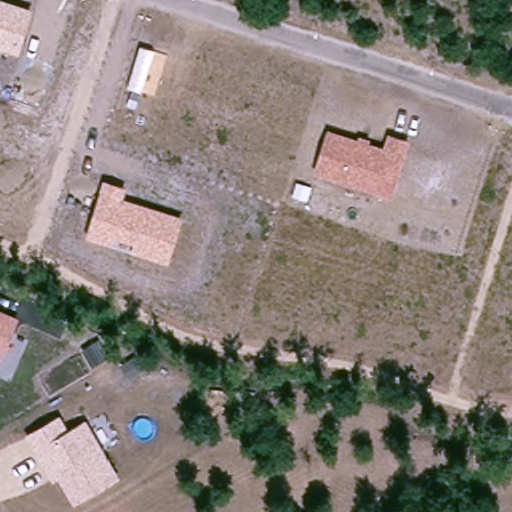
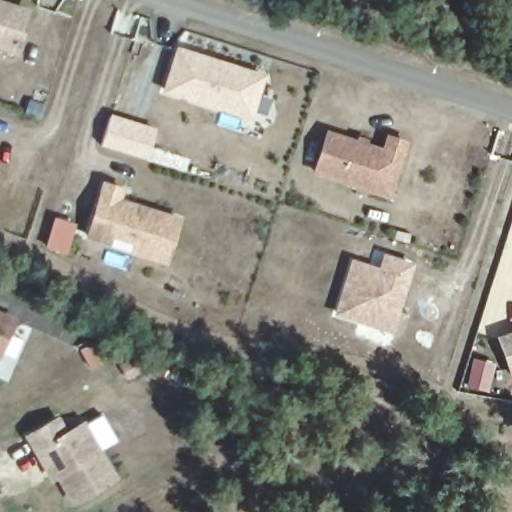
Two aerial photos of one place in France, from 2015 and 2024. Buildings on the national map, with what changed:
unchanged [(0,0),(34,11),(20,56),(0,50),(0,0)]
new [(266,74),(253,119),(163,91),(177,46),(266,74)]
new [(101,145),(111,113),(158,127),(148,160),(101,145)]
unchanged [(313,174),(327,130),(384,148),(388,134),(411,142),(391,199),(313,174)]
unchanged [(85,238),(103,181),(128,188),(125,198),(185,218),(169,265),(85,238)]
new [(379,266),(382,253),(415,263),(393,333),(334,315),(352,259),(379,266)]
unchanged [(0,311),(20,319),(1,359),(0,359),(0,311)]
unchanged [(500,335),(512,331),(512,370),(500,335)]
unchanged [(23,435),(60,413),(70,431),(86,421),(121,480),(74,508),(58,480),(51,484),(23,435)]

